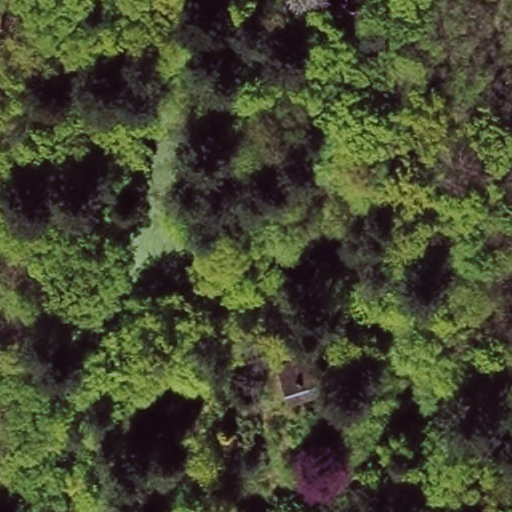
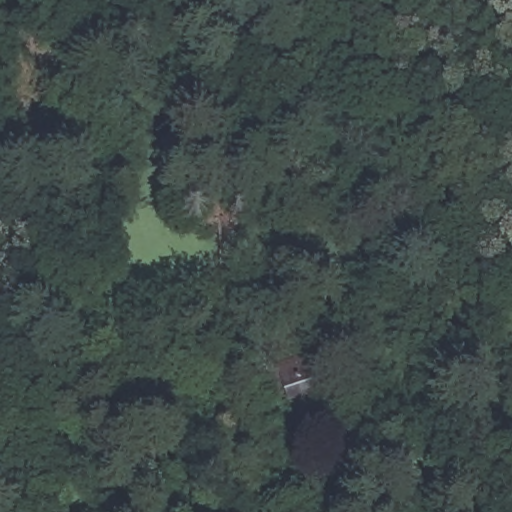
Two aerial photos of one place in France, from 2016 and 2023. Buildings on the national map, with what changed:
unchanged [(320,365),(333,390),(296,406),(285,380),(320,365)]

